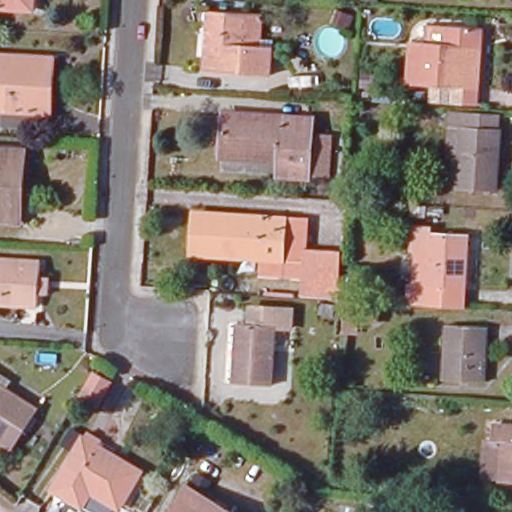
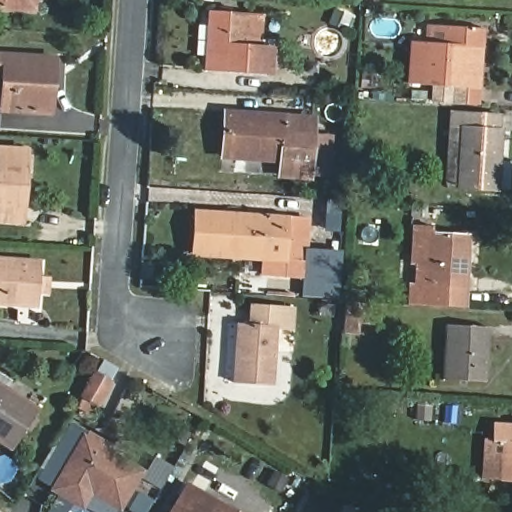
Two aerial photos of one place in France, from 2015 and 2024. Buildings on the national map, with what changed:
unchanged [(29,12),(0,11),(0,0),(30,0),(29,12)]
unchanged [(268,80),(202,75),(205,16),(244,17),(258,19),(257,53),(269,54),(268,80)]
unchanged [(480,29),(474,104),(447,101),(447,86),(407,84),(409,41),(435,42),(435,25),(480,29)]
unchanged [(56,57),(55,75),(45,75),(44,94),(54,94),(53,112),(0,110),(0,53),(56,57)]
unchanged [(497,121),(493,195),(454,192),(454,191),(445,191),(449,117),(497,121)]
unchanged [(324,187),(306,186),(275,184),(276,169),(220,166),(223,122),(280,126),(309,128),(308,142),(326,142),(324,187)]
unchanged [(21,154),(19,186),(14,186),(12,225),(0,224),(0,152),(21,154)]
unchanged [(304,220),(303,250),(337,252),(335,297),(299,294),(300,277),(259,273),(260,257),(189,252),(192,212),(304,220)]
unchanged [(406,308),(406,288),(412,287),(414,257),(409,256),(410,231),(428,231),(428,237),(465,240),(461,313),(406,308)]
unchanged [(37,267),(35,310),(0,307),(0,264),(37,267)]
unchanged [(378,306),(377,322),(357,320),(356,332),(339,331),(341,304),(378,306)]
unchanged [(289,309),(287,327),(273,326),(269,385),(231,383),(235,323),(248,323),(250,306),(289,309)]
unchanged [(484,332),(481,387),(439,385),(443,330),(484,332)]
unchanged [(77,400),(83,390),(90,378),(105,387),(92,408),(77,400)]
unchanged [(10,386),(3,396),(33,416),(11,451),(0,443),(0,379),(10,386)]
unchanged [(512,476),(496,475),(499,438),(489,437),(490,421),(512,422),(512,476)]
unchanged [(104,442),(101,447),(143,471),(122,507),(94,490),(85,505),(56,488),(89,433),(104,442)]
unchanged [(172,512),(185,491),(218,512),(172,512)]

